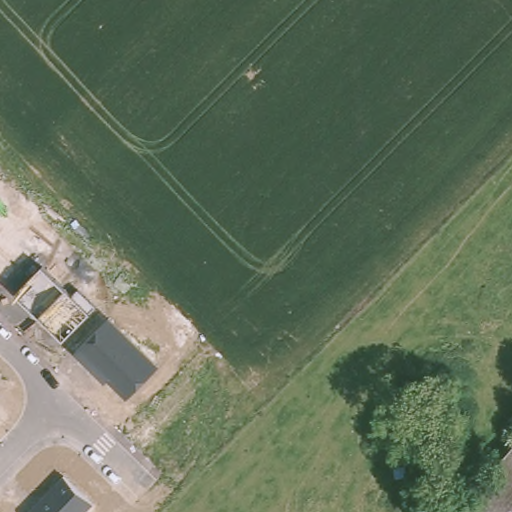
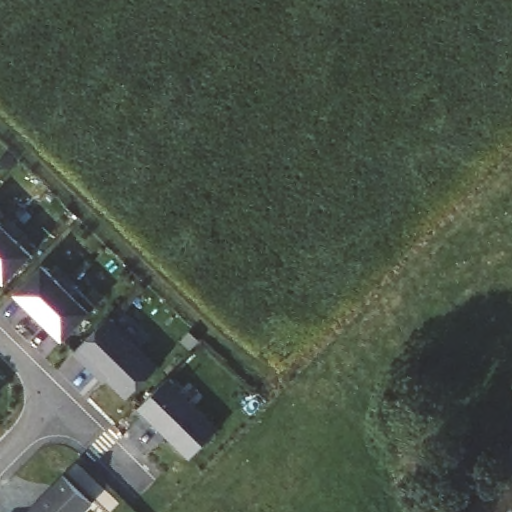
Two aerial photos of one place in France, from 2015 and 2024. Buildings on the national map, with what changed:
new [(8,231),(0,239),(0,222),(8,231)]
new [(32,254),(5,282),(0,277),(0,239),(8,231),(32,254)]
unchanged [(72,295),(79,287),(97,307),(62,341),(13,293),(42,265),(72,295)]
unchanged [(158,368),(128,398),(111,380),(107,383),(74,349),(108,316),(158,368)]
new [(167,377),(218,428),(190,457),(139,407),(167,377)]
unchanged [(502,461),(512,448),(512,470),(508,467),(502,461)]
unchanged [(512,470),(512,512),(470,512),(508,467),(512,470)]
unchanged [(83,512),(26,512),(64,472),(93,503),(83,512)]

